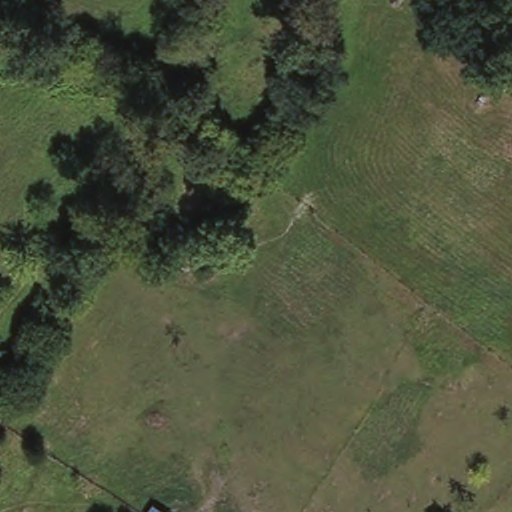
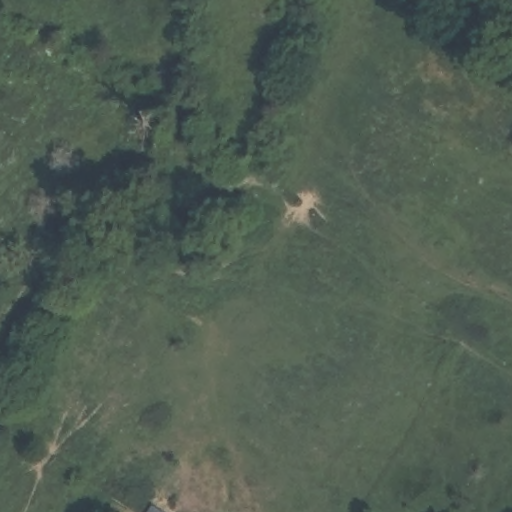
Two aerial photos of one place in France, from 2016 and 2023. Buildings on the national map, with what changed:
[]

